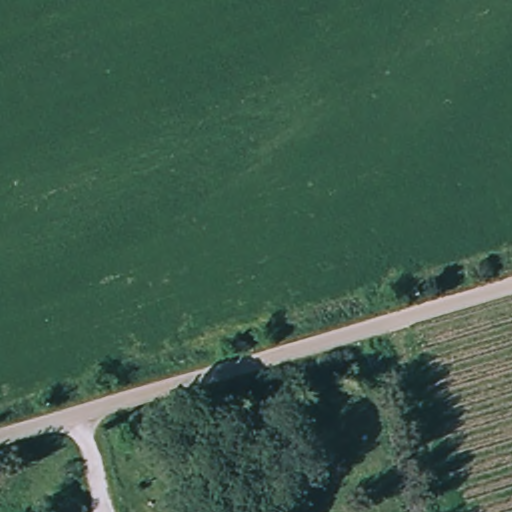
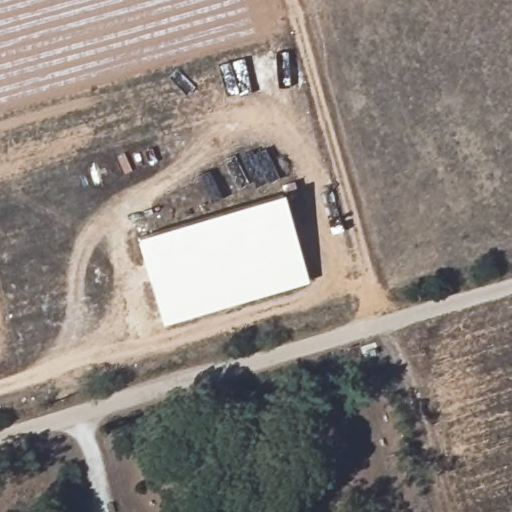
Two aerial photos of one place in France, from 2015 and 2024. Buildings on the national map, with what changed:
new [(163,325),(137,236),(283,194),(309,282),(163,325)]

